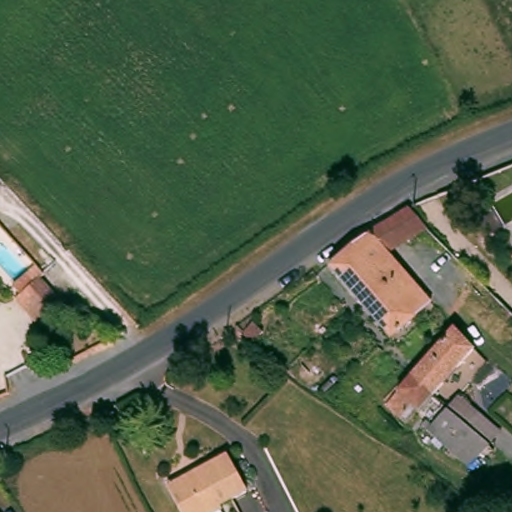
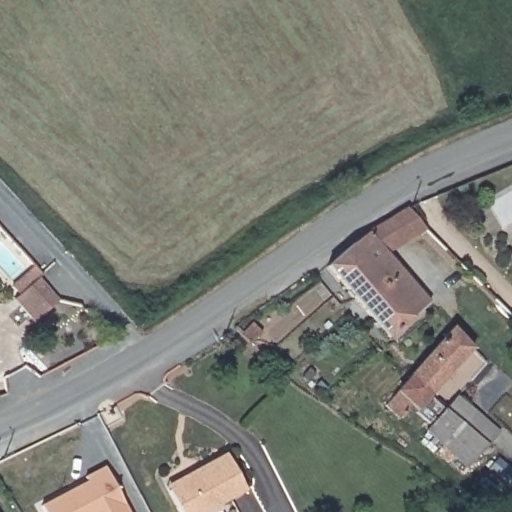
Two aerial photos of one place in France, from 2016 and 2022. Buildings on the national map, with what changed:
unchanged [(411,201),(433,222),(392,251),(387,245),(372,230),(411,200),(411,201)]
unchanged [(331,266),(362,237),(372,230),(387,245),(392,251),(400,260),(361,293),(357,296),(331,266)]
unchanged [(361,293),(400,260),(436,301),(394,338),(357,296),(361,293)]
unchanged [(45,275),(48,272),(67,294),(39,320),(19,298),(45,275)]
unchanged [(258,317),(268,332),(259,339),(249,325),(258,317)]
unchanged [(468,358),(436,395),(431,400),(428,405),(406,386),(450,336),(468,358)]
unchanged [(423,424),(430,428),(449,405),(458,393),(470,402),(485,415),(476,427),(492,440),(467,469),(419,430),(423,424)]
unchanged [(220,503),(221,506),(211,512),(182,512),(166,484),(227,450),(248,487),(220,503)]
new [(88,481),(85,477),(105,468),(129,512),(45,512),(41,505),(88,481)]

